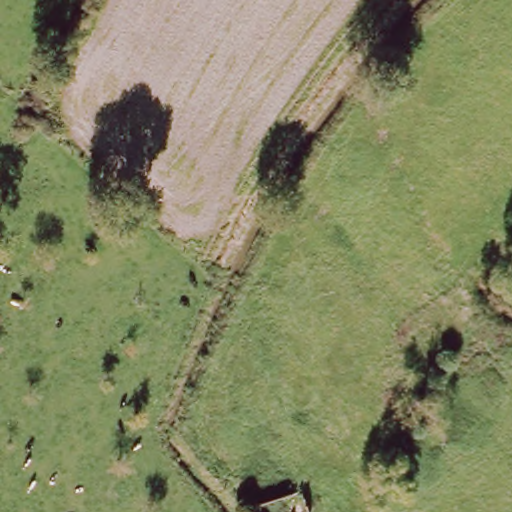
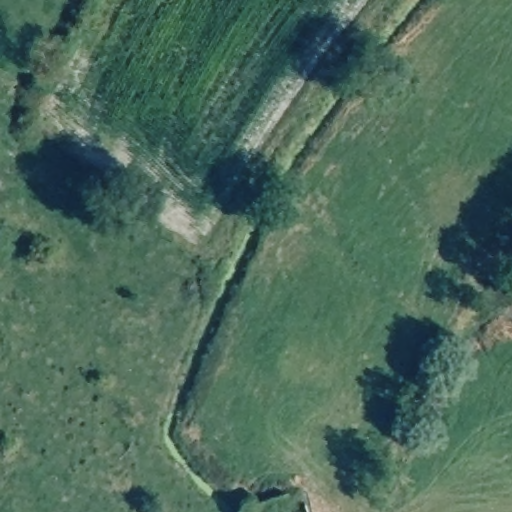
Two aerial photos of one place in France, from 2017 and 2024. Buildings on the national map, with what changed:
[]

